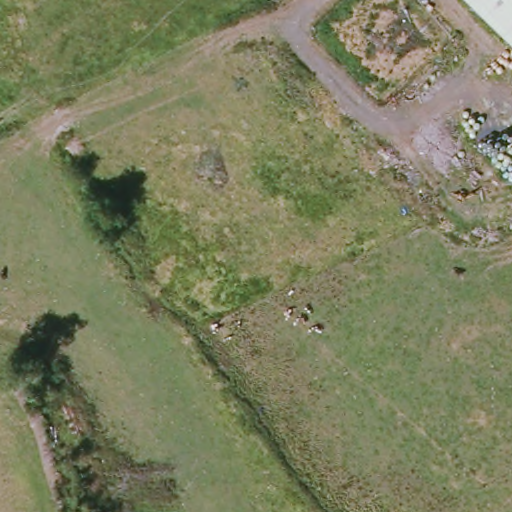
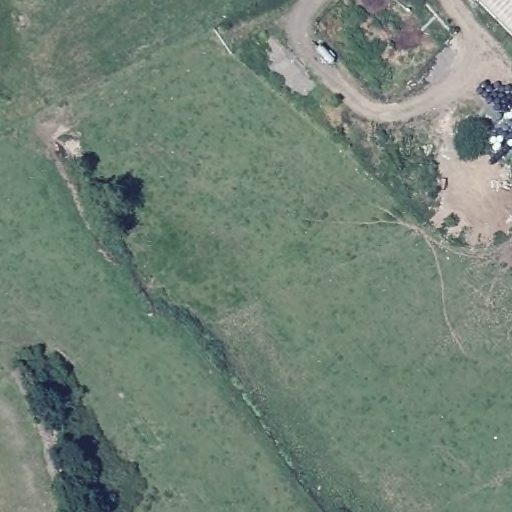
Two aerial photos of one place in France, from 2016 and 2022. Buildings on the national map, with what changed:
unchanged [(512,0),(512,38),(473,0),(512,0)]

